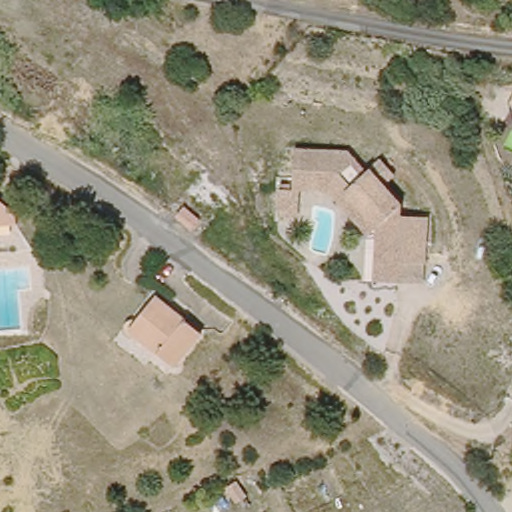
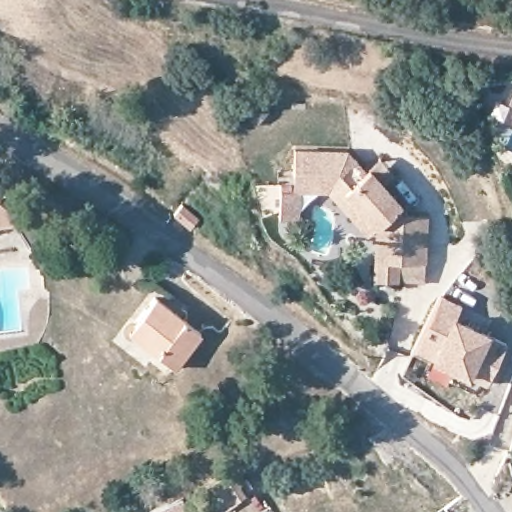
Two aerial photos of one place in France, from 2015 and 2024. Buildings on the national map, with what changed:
unchanged [(366,293),(370,274),(374,255),(377,237),(346,183),(322,178),(307,174),(311,153),(313,146),(364,158),(376,180),(394,170),(404,188),(391,195),(405,219),(402,233),(427,239),(418,284),(392,279),(388,298),(366,293)]
unchanged [(311,153),(307,174),(322,178),(320,196),(301,194),(299,220),(276,222),(278,190),(293,189),(293,153),(311,153)]
unchanged [(10,230),(0,236),(0,220),(5,222),(10,230)]
new [(443,293),(464,305),(455,317),(492,335),(511,346),(487,385),(470,377),(432,360),(414,349),(443,293)]
unchanged [(144,304),(190,341),(165,372),(118,335),(144,304)]

